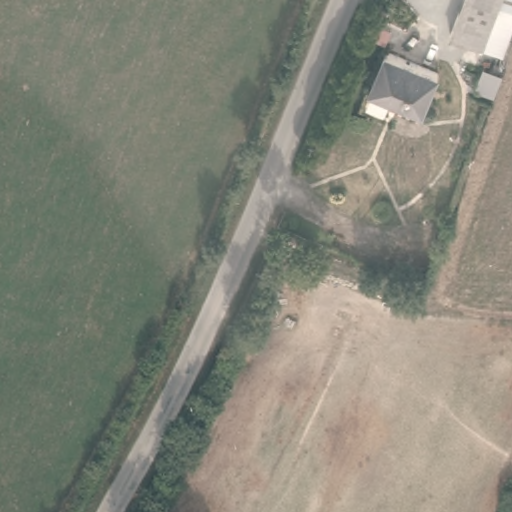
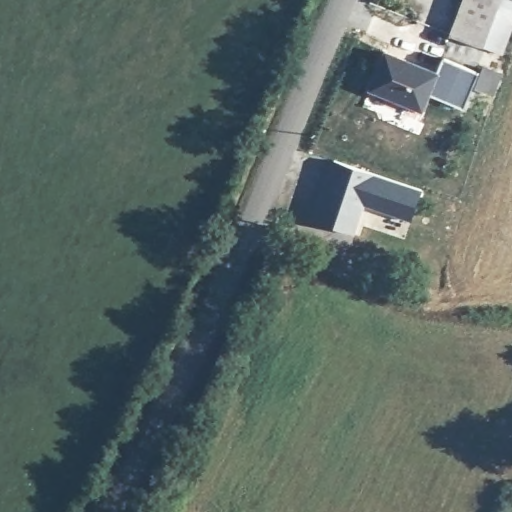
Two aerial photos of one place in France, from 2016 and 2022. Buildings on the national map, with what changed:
unchanged [(450,34),(463,0),(512,0),(512,32),(503,54),(483,46),(450,34)]
unchanged [(386,52),(438,73),(423,111),(370,90),(386,52)]
new [(444,58),(478,72),(484,65),(502,72),(494,95),(473,89),(464,108),(430,94),(438,73),(444,58)]
new [(421,188),(410,219),(363,204),(353,233),(313,218),(333,158),(421,188)]

